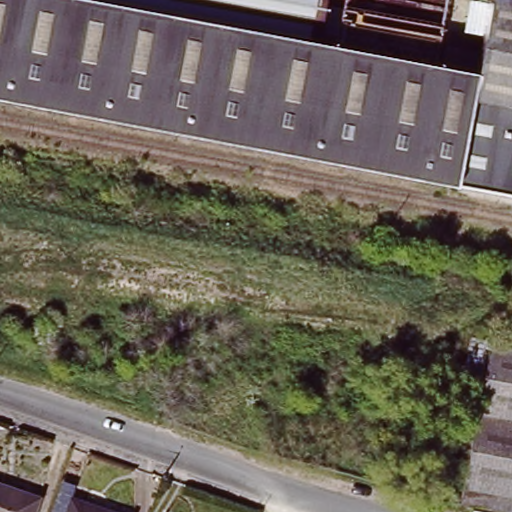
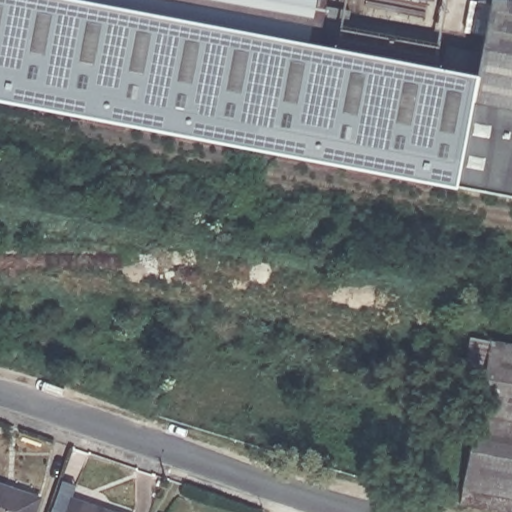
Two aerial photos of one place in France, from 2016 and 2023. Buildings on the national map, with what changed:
unchanged [(451,181),(0,98),(0,0),(324,0),(323,5),(350,10),(343,44),(316,39),(315,44),(430,64),(430,67),(469,74),(478,20),(459,17),(462,0),(476,0),(482,1),(482,0),(512,0),(512,192),(451,181)]
unchanged [(512,347),(512,512),(504,512),(457,503),(488,342),(512,347)]
unchanged [(35,512),(0,512),(0,477),(42,491),(35,512)]
unchanged [(59,512),(66,492),(124,512),(59,512)]

